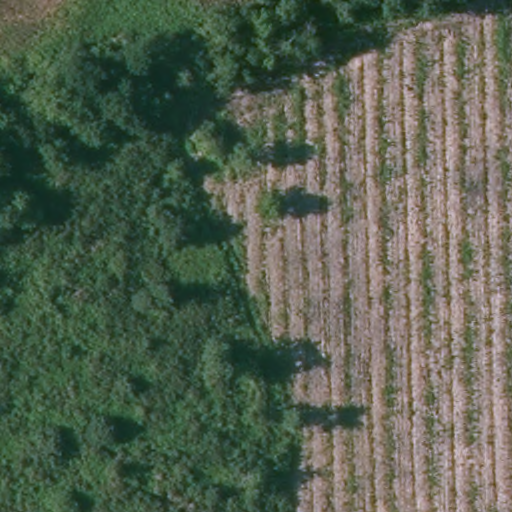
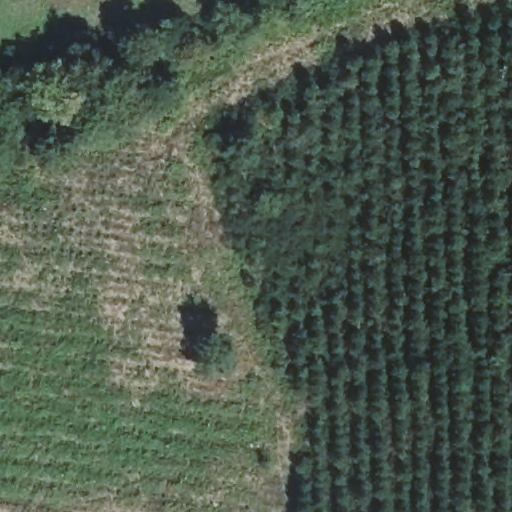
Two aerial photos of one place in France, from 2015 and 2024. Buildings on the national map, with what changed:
[]

